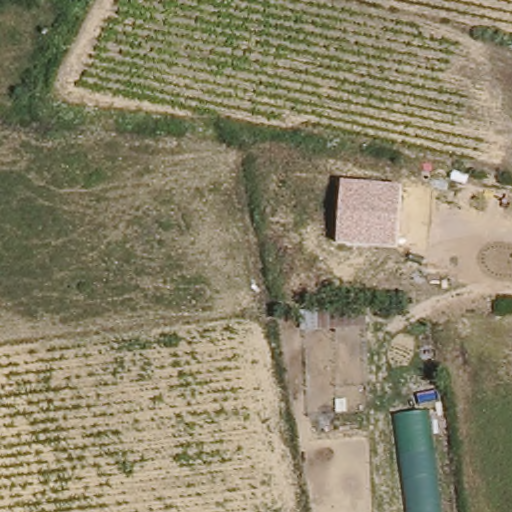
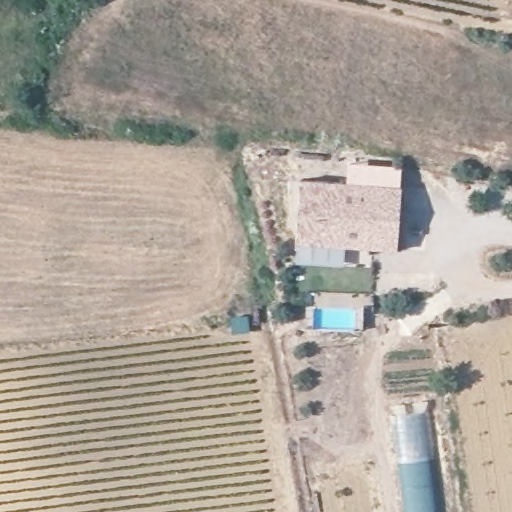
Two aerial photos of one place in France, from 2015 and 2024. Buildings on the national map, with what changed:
new [(337,244),(296,241),(300,179),(342,182),(337,244)]
unchanged [(342,182),(402,187),(397,250),(337,244),(342,182)]
unchanged [(429,408),(442,512),(411,512),(397,412),(429,408)]

